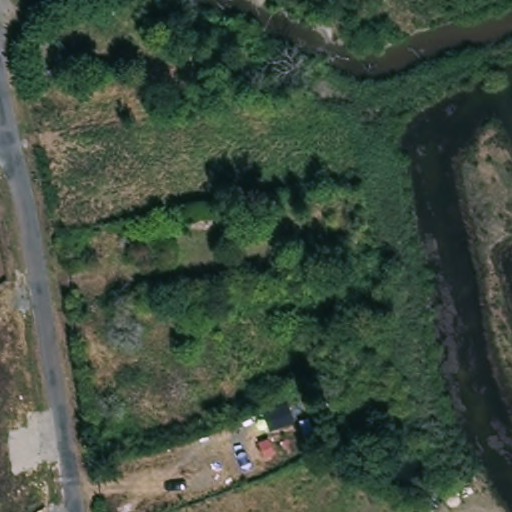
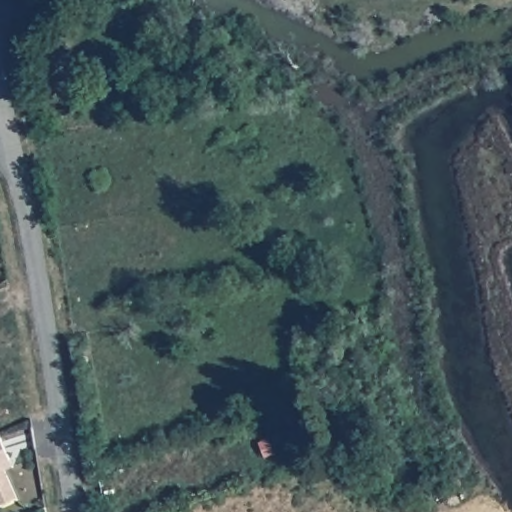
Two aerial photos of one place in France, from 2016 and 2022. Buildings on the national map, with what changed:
unchanged [(160,188),(159,180),(173,177),(175,185),(160,188)]
unchanged [(274,205),(260,207),(259,199),(273,196),(274,205)]
unchanged [(194,289),(184,290),(183,281),(192,280),(194,289)]
new [(11,470),(3,473),(15,502),(0,508),(0,442),(8,461),(11,470)]

